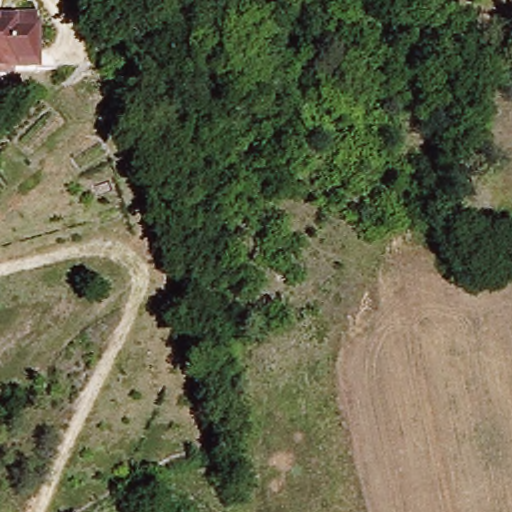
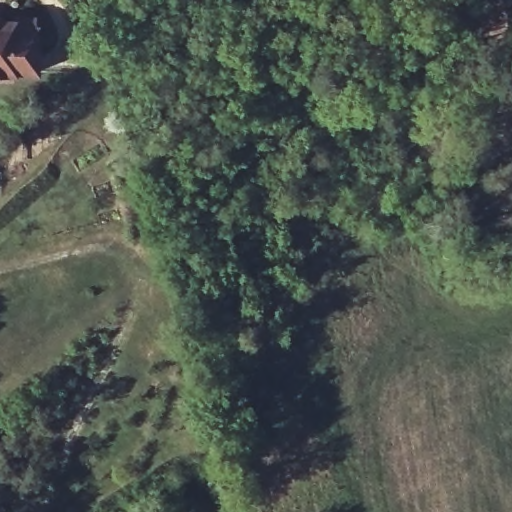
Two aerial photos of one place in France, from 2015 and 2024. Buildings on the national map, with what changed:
unchanged [(35,20),(37,73),(0,73),(0,20),(35,20)]

